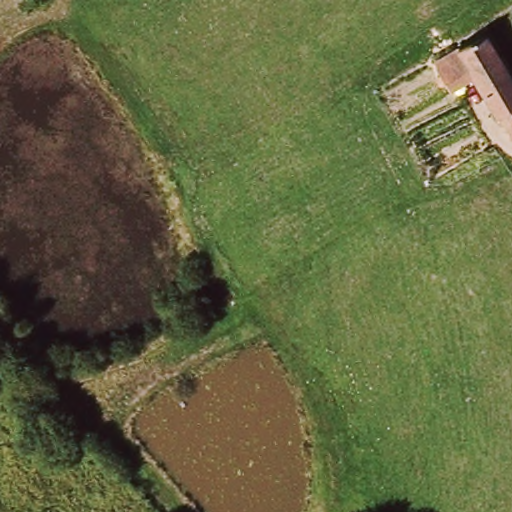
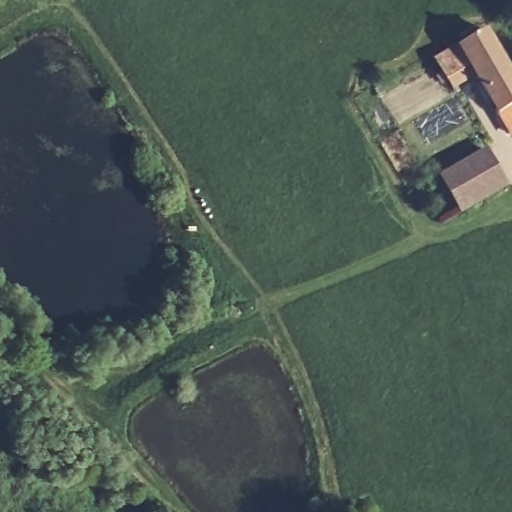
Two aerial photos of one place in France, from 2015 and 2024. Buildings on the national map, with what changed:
unchanged [(512,70),(512,129),(510,130),(471,68),(449,79),(437,60),(488,31),(512,70)]
new [(510,186),(462,214),(440,175),(488,148),(510,186)]

